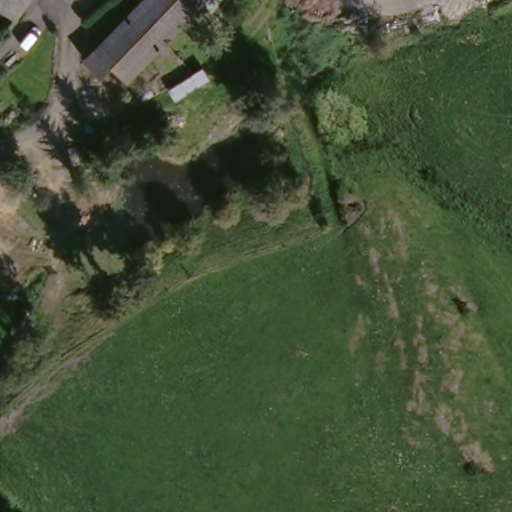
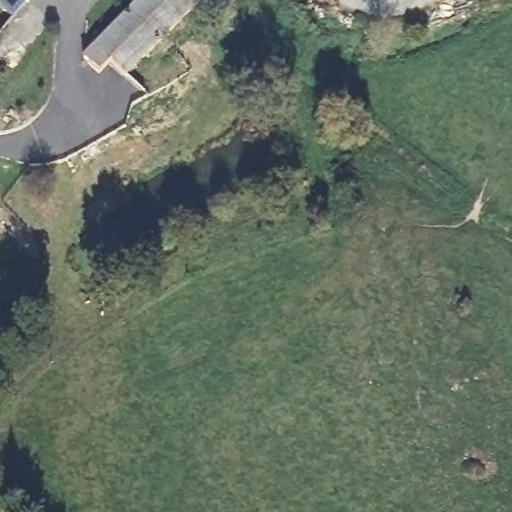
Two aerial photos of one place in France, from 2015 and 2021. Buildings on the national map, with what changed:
unchanged [(11,22),(0,13),(0,0),(28,0),(11,22)]
unchanged [(139,0),(200,0),(184,16),(123,77),(92,47),(139,0)]

